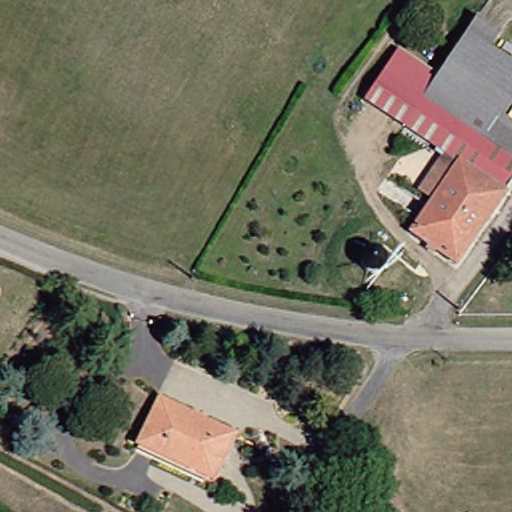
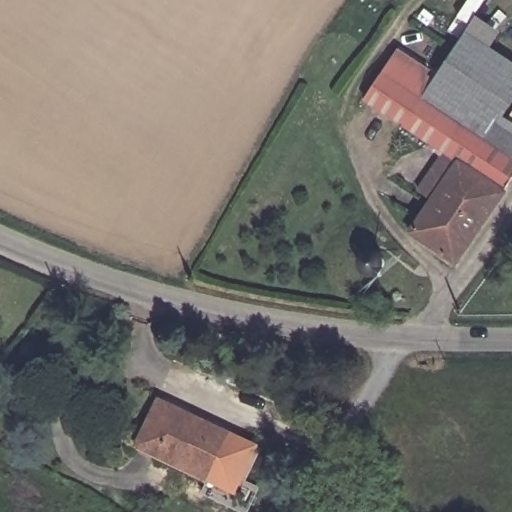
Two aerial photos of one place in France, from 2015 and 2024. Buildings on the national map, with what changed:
unchanged [(428,82),(461,34),(512,69),(512,88),(494,114),(512,127),(512,164),(417,98),(428,82)]
unchanged [(422,198),(409,189),(433,152),(362,104),(388,67),(394,58),(404,65),(406,61),(422,72),(420,76),(428,82),(417,98),(512,164),(512,165),(495,190),(497,191),(446,264),(398,232),(422,198)]
unchanged [(368,275),(363,272),(361,270),(360,267),(359,264),(359,261),(361,256),(364,252),(366,251),(369,250),(373,249),(377,250),(380,252),(383,254),(385,257),(386,261),(386,265),(385,268),(383,272),(380,274),(377,275),(373,276),(370,276),(368,275)]
unchanged [(128,445),(149,399),(223,434),(202,480),(128,445)]
new [(223,434),(257,450),(237,496),(202,480),(223,434)]

